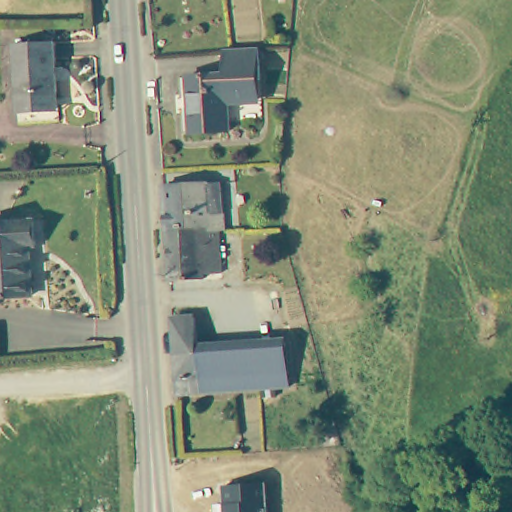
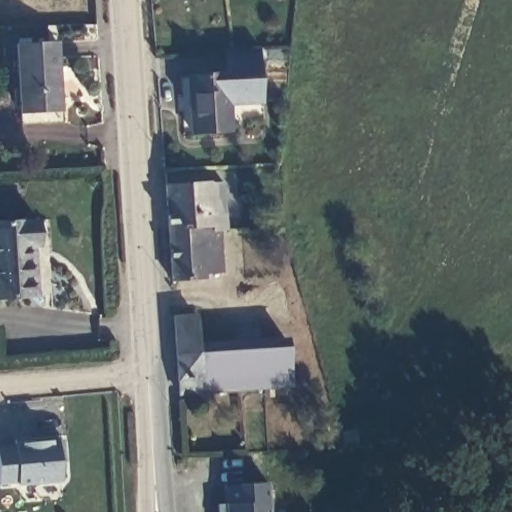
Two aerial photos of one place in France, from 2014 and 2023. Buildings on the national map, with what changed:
unchanged [(58,44),(61,101),(22,102),(20,45),(58,44)]
unchanged [(228,71),(225,71),(224,45),(258,44),(260,100),(230,101),(228,71)]
unchanged [(231,127),(192,129),(189,72),(225,71),(228,71),(230,101),(231,127)]
unchanged [(220,226),(208,226),(208,223),(166,225),(163,181),(222,178),(226,225),(220,226)]
unchanged [(43,214),(47,290),(0,292),(0,215),(43,214)]
unchanged [(222,253),(233,253),(233,269),(206,270),(206,277),(170,279),(166,225),(208,223),(208,226),(220,226),(222,253)]
unchanged [(206,388),(182,389),(176,313),(201,313),(203,347),(206,388)]
unchanged [(264,342),(290,341),(292,382),(266,384),(246,385),(206,388),(203,347),(243,344),(264,342)]
new [(15,484),(16,482),(0,484),(0,447),(15,445),(14,441),(56,437),(61,480),(15,484)]
unchanged [(225,504),(224,485),(267,482),(269,512),(217,512),(216,504),(225,504)]

